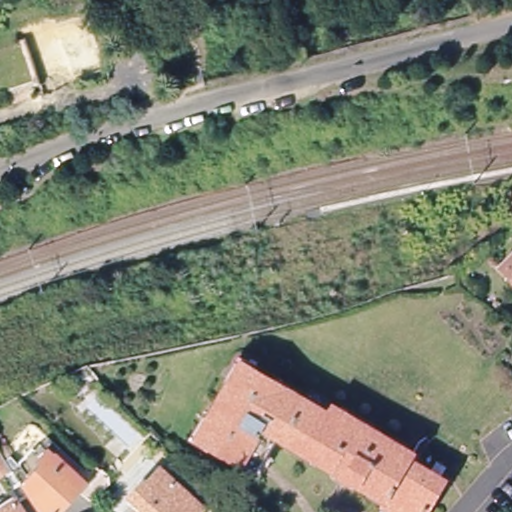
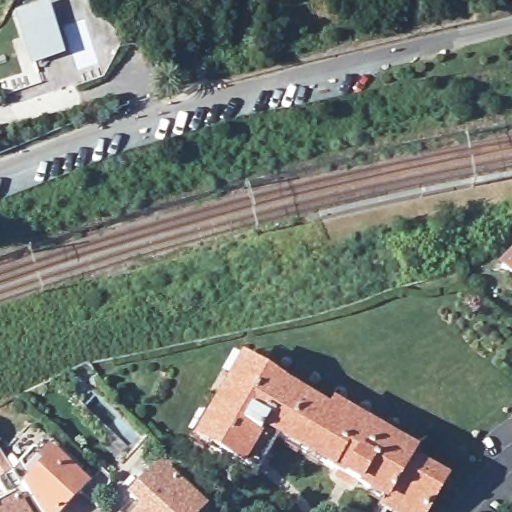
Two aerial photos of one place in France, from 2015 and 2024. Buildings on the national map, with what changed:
new [(30,67),(15,16),(48,5),(64,56),(30,67)]
unchanged [(495,278),(512,262),(512,292),(505,286),(495,278)]
unchanged [(385,496),(273,431),(252,466),(193,432),(236,358),(321,407),(326,398),(412,448),(407,456),(440,475),(435,483),(417,512),(396,512),(381,503),(385,496)]
unchanged [(46,442),(82,476),(76,482),(83,488),(77,494),(60,512),(35,512),(27,500),(14,478),(46,442)]
unchanged [(7,504),(0,493),(0,457),(14,478),(27,500),(15,508),(18,512),(0,512),(0,509),(7,504)]
unchanged [(91,486),(99,478),(100,477),(107,483),(108,491),(95,506),(94,508),(89,504),(80,497),(91,486)]
unchanged [(141,512),(127,499),(145,480),(159,494),(172,479),(201,508),(197,512),(141,512)]

